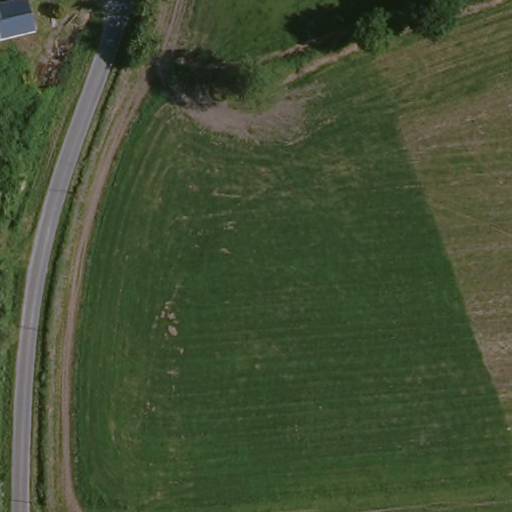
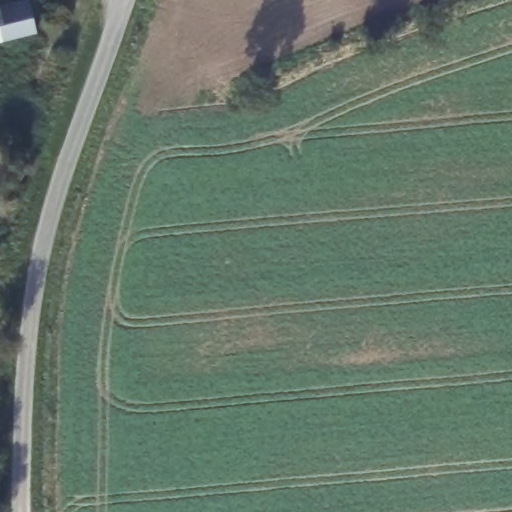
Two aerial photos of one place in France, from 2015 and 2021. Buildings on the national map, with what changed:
unchanged [(28,0),(33,35),(0,42),(0,0),(28,0)]

